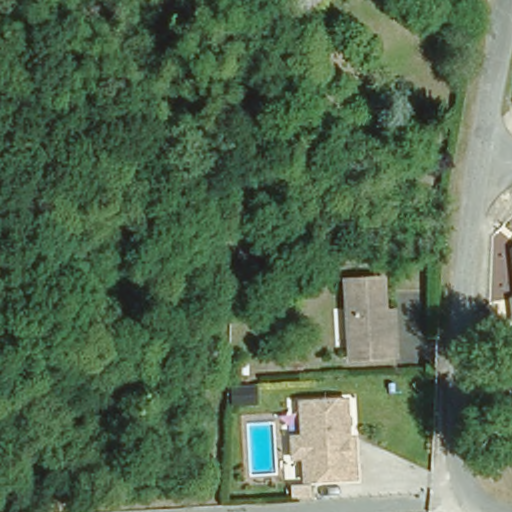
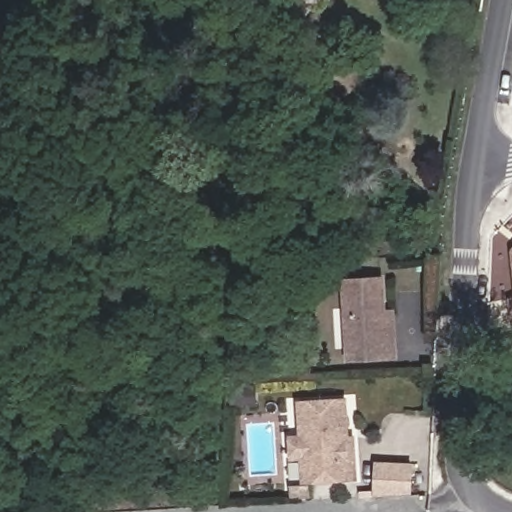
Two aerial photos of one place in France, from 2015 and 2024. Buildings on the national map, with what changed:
unchanged [(325,39),(288,13),(297,0),(318,0),(341,17),(325,39)]
unchanged [(512,249),(512,269),(511,251),(512,249)]
unchanged [(347,359),(346,283),(379,282),(381,342),(388,342),(388,358),(347,359)]
unchanged [(505,299),(512,298),(512,321),(508,322),(505,299)]
unchanged [(300,403),(343,402),(345,439),(353,440),(353,481),(301,483),(300,403)]
new [(377,462),(412,463),(410,495),(376,492),(377,462)]

